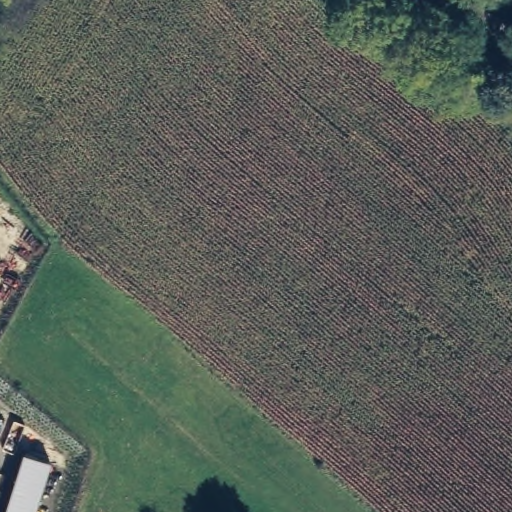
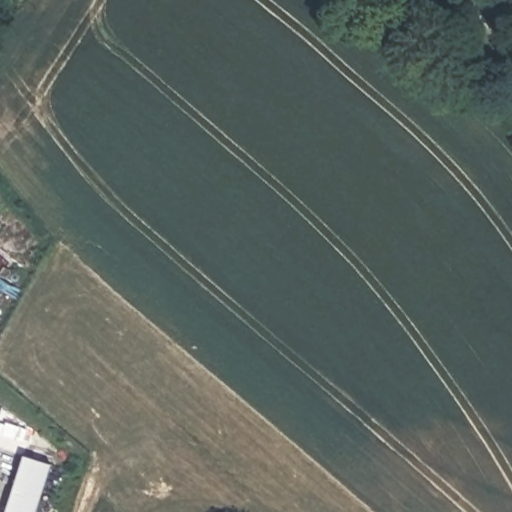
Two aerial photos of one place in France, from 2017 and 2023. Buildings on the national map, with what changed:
unchanged [(5,512),(24,454),(51,463),(35,512),(5,512)]

